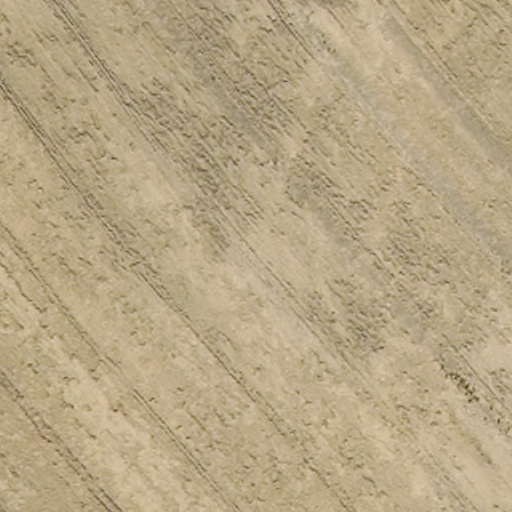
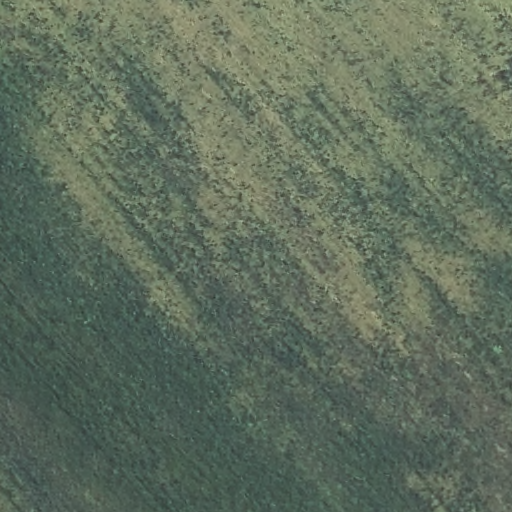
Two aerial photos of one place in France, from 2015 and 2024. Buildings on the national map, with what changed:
[]

